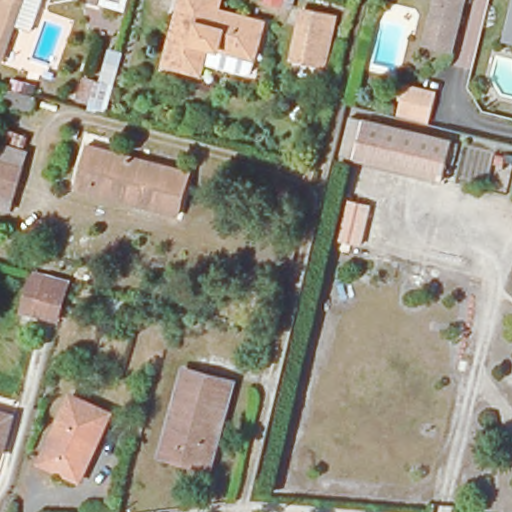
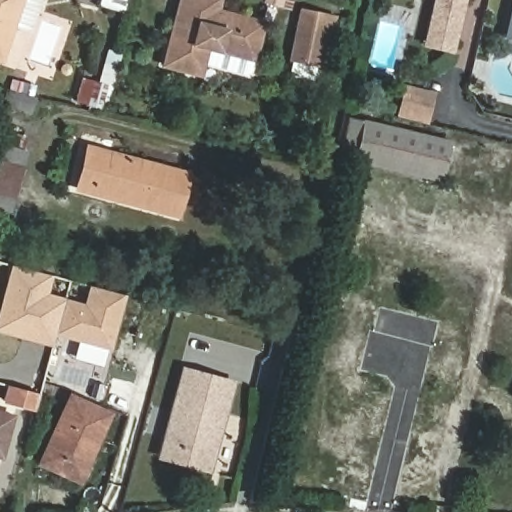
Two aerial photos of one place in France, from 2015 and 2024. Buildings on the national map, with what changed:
unchanged [(23,0),(2,61),(0,60),(0,0),(23,0)]
unchanged [(96,10),(99,0),(130,0),(126,17),(96,10)]
unchanged [(205,60),(201,75),(165,66),(181,0),(221,0),(219,11),(264,23),(255,60),(247,58),(245,67),(241,69),(205,60)]
unchanged [(265,3),(265,0),(283,0),(281,8),(265,3)]
unchanged [(435,0),(462,0),(451,45),(432,40),(426,39),(427,33),(435,0)]
unchanged [(291,56),(301,10),(336,18),(326,65),(291,56)]
unchanged [(512,43),(508,43),(512,28),(512,43)]
unchanged [(105,64),(118,68),(106,110),(75,101),(80,77),(100,83),(105,64)]
unchanged [(412,89),(437,95),(430,123),(406,117),(412,89)]
unchanged [(452,141),(442,182),(354,161),(341,158),(350,117),(363,121),(363,120),(452,141)]
unchanged [(29,151),(12,214),(0,210),(0,143),(29,151)]
unchanged [(177,217),(78,190),(89,146),(189,175),(177,217)]
new [(13,266),(51,276),(45,295),(65,300),(52,345),(0,331),(0,313),(13,266)]
demolished [(34,317),(45,274),(71,281),(59,324),(34,317)]
new [(65,300),(86,306),(91,286),(124,295),(110,349),(56,333),(65,300)]
unchanged [(232,385),(211,468),(162,455),(185,372),(232,385)]
unchanged [(80,482),(40,463),(71,396),(111,414),(80,482)]
unchanged [(12,417),(2,457),(0,456),(0,413),(12,417)]

